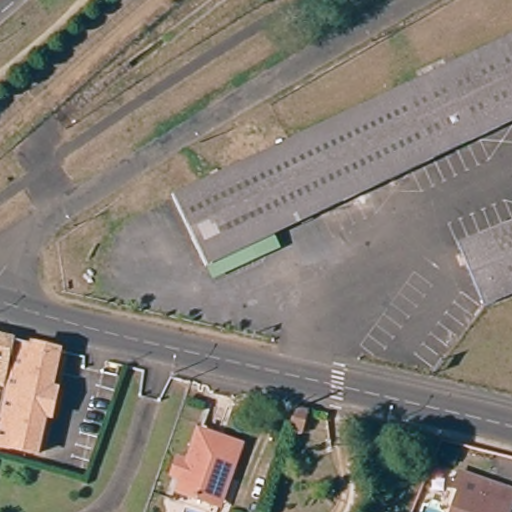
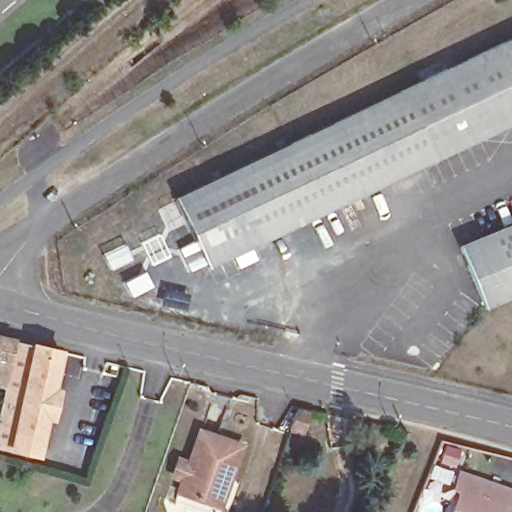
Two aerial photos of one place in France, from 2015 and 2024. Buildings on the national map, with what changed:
unchanged [(492,2),(491,0),(496,0),(492,2)]
unchanged [(512,118),(204,263),(174,198),(512,40),(512,118)]
unchanged [(461,247),(512,224),(512,295),(489,305),(461,247)]
unchanged [(55,414),(49,412),(39,450),(0,440),(0,417),(9,380),(0,378),(0,331),(20,336),(65,347),(56,382),(56,385),(62,386),(55,414)]
unchanged [(309,411),(303,431),(289,426),(296,407),(309,411)]
unchanged [(225,477),(217,500),(181,487),(202,430),(203,427),(244,440),(244,442),(230,478),(225,477)]
unchanged [(452,512),(462,485),(453,482),(460,463),(485,472),(512,483),(512,497),(507,512),(452,512)]

